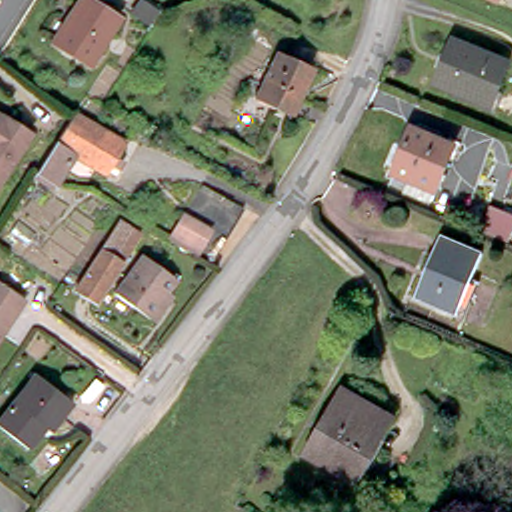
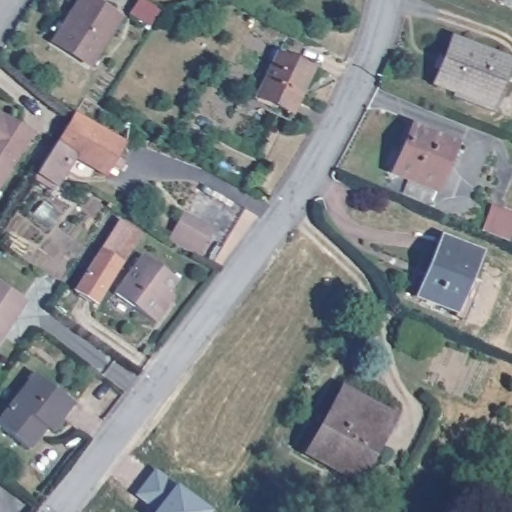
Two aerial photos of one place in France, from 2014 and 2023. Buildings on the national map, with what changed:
unchanged [(88,61),(56,39),(52,36),(71,9),(77,0),(99,0),(120,14),(88,61)]
unchanged [(150,24),(135,14),(142,1),(158,13),(150,24)]
unchanged [(490,105),(438,84),(448,60),(443,59),(453,38),(509,61),(490,105)]
unchanged [(286,108),(253,91),(272,49),(306,64),(286,108)]
unchanged [(121,134),(103,164),(71,145),(52,174),(32,161),(70,103),(121,134)]
unchanged [(0,113),(1,111),(29,128),(0,173),(0,113)]
unchanged [(426,199),(402,188),(406,176),(389,168),(407,122),(451,139),(426,199)]
unchanged [(175,234),(206,179),(250,204),(217,260),(175,234)]
unchanged [(77,283),(116,219),(120,213),(140,224),(135,231),(95,294),(77,283)]
unchanged [(417,298),(425,274),(421,273),(436,237),(478,255),(453,314),(417,298)]
unchanged [(153,317),(147,313),(110,292),(133,251),(172,273),(163,285),(169,289),(153,317)]
unchanged [(2,325),(3,327),(0,332),(0,273),(26,290),(2,325)]
unchanged [(46,428),(29,450),(0,428),(0,423),(36,375),(68,400),(73,404),(51,432),(46,428)]
unchanged [(356,479),(310,454),(345,393),(391,417),(356,479)]
new [(158,511),(137,494),(155,471),(208,512),(157,512),(158,511)]

